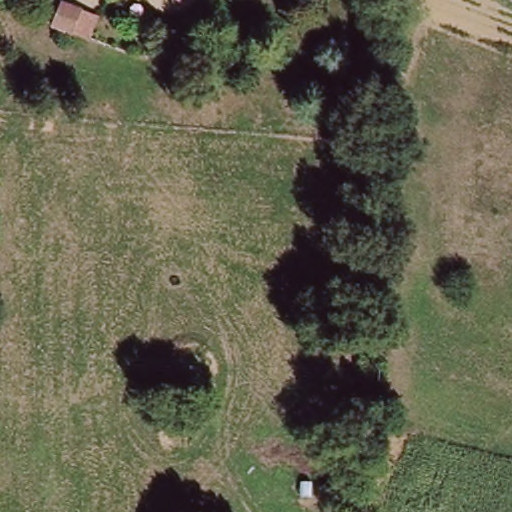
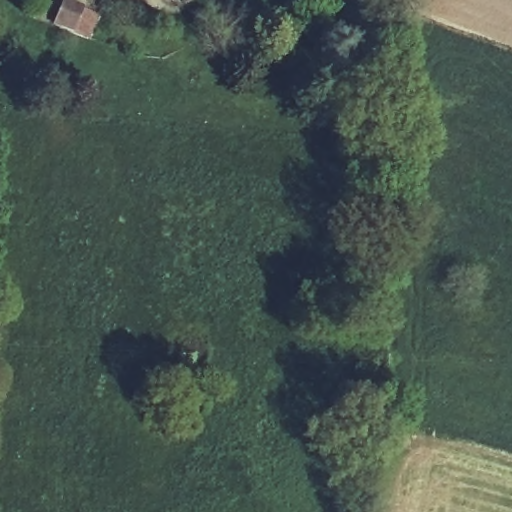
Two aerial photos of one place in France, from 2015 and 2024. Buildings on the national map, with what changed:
unchanged [(177,1),(175,0),(178,0),(177,1)]
unchanged [(81,9),(100,16),(91,42),(70,35),(48,29),(59,2),(81,9)]

